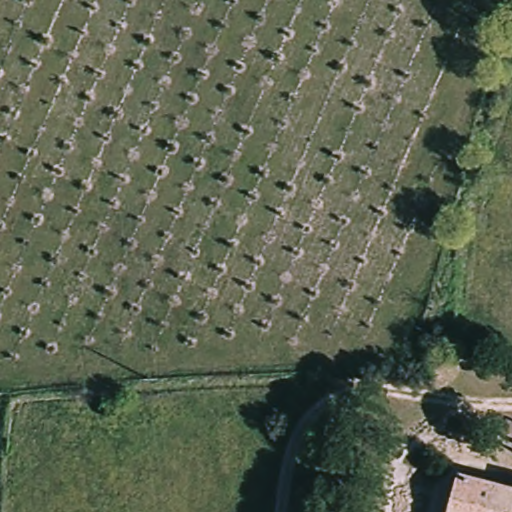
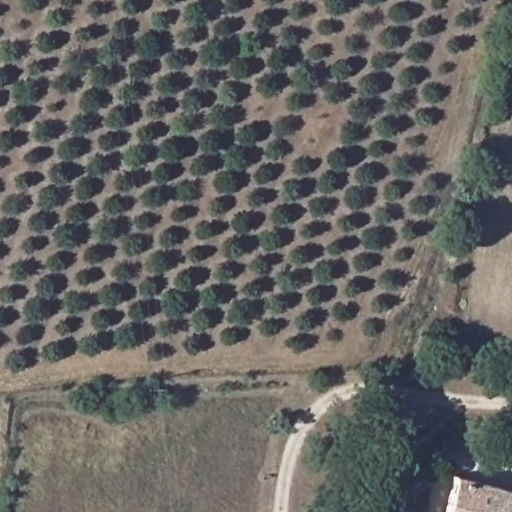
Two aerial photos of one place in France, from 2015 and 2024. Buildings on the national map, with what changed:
unchanged [(463,478),(512,490),(512,512),(453,512),(463,478)]

